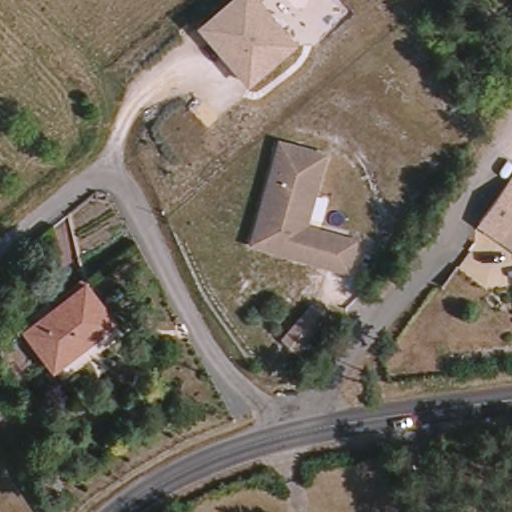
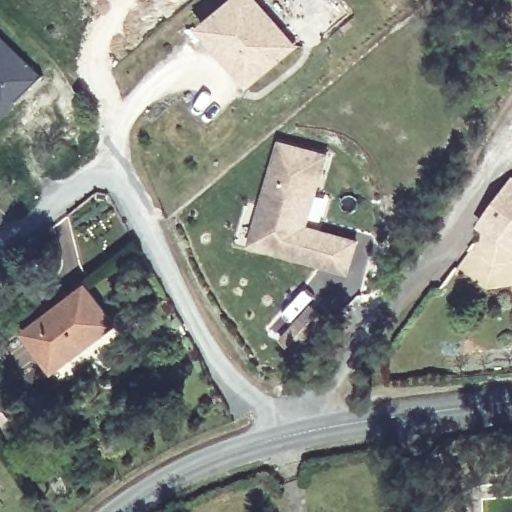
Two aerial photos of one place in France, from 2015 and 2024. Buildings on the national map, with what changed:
unchanged [(260,0),(297,45),(251,85),(199,27),(231,0),(260,0)]
new [(4,118),(0,121),(0,33),(42,76),(4,118)]
unchanged [(261,226),(287,143),(332,156),(320,194),(310,227),(361,243),(352,273),(261,245),(256,244),(261,226)]
unchanged [(505,234),(512,224),(512,239),(505,234)]
unchanged [(48,362),(27,333),(87,290),(114,329),(56,372),(48,362)]
unchanged [(289,332),(310,310),(320,300),(332,312),(322,323),(301,344),(289,332)]
unchanged [(0,393),(2,395),(0,396),(0,393)]

